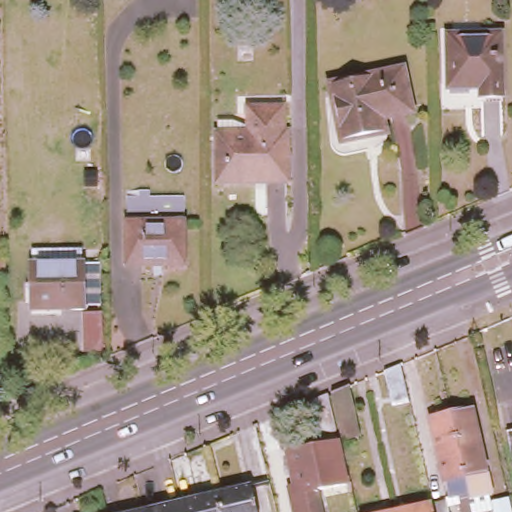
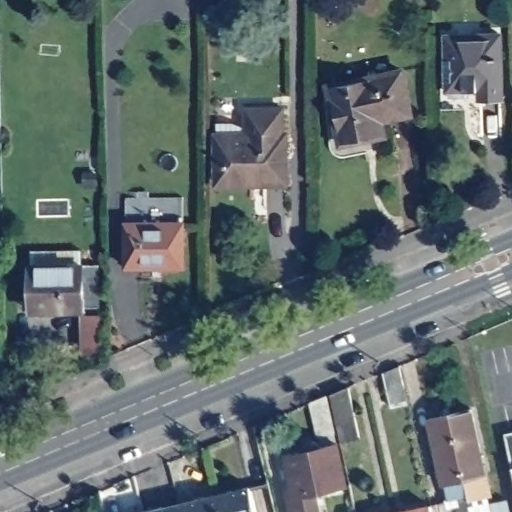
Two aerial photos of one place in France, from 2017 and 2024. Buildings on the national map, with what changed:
unchanged [(457,87),(452,87),(449,86),(449,84),(452,83),(450,31),(505,29),(507,93),(484,94),(482,86),(470,87),(470,88),(456,89),(457,87)]
unchanged [(381,114),(384,128),(340,138),(329,81),(400,64),(410,108),(381,114)]
unchanged [(255,188),(218,189),(218,146),(218,128),(234,127),(247,135),(247,114),(282,113),(282,139),(285,139),(285,182),(285,188),(255,188)]
unchanged [(131,267),(131,222),(187,222),(187,268),(131,267)]
unchanged [(30,259),(32,259),(32,245),(80,245),(81,259),(82,259),(98,259),(99,301),(83,301),(83,305),(32,305),(30,259)]
unchanged [(405,408),(390,412),(382,376),(397,369),(405,408)]
unchanged [(339,450),(319,455),(308,408),(327,400),(339,450)]
unchanged [(266,502),(271,500),(263,467),(277,463),(282,453),(292,451),(298,456),(289,416),(302,410),(324,498),(295,504),(297,512),(268,512),(266,502)]
unchanged [(452,415),(473,410),(489,475),(502,472),(512,512),(474,512),(452,415)]
unchanged [(460,502),(456,503),(452,500),(448,486),(445,486),(430,420),(452,415),(474,512),(463,512),(460,502)]
unchanged [(512,437),(512,441),(511,437),(512,437)]
unchanged [(242,491),(247,512),(210,512),(207,499),(242,491)]
unchanged [(169,508),(207,499),(210,512),(170,512),(169,508)]
unchanged [(451,512),(418,512),(435,508),(450,505),(451,512)]
unchanged [(169,508),(170,512),(152,512),(169,508)]

